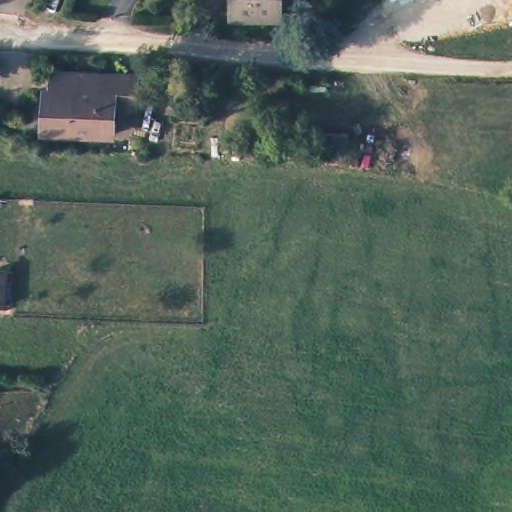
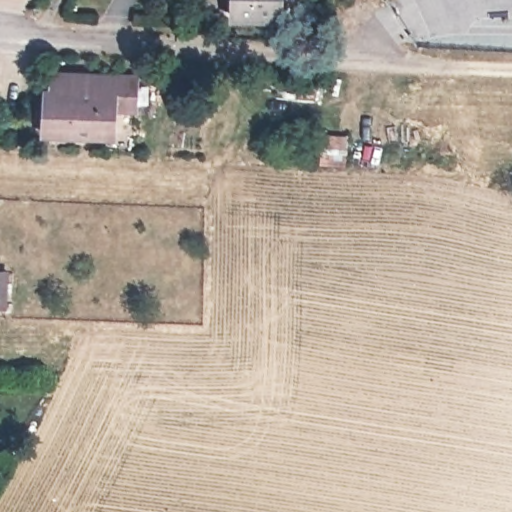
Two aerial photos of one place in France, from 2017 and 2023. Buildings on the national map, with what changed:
unchanged [(232,0),(280,0),(280,13),(232,11),(232,0)]
unchanged [(135,74),(133,103),(115,102),(112,130),(42,125),(43,105),(50,105),(52,69),(135,74)]
unchanged [(6,270),(4,305),(0,305),(0,270),(6,270)]

